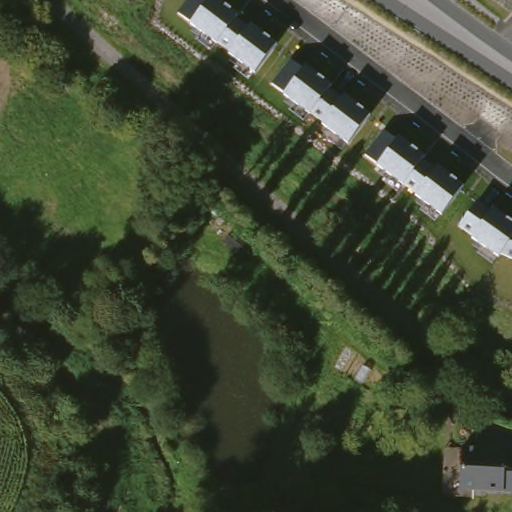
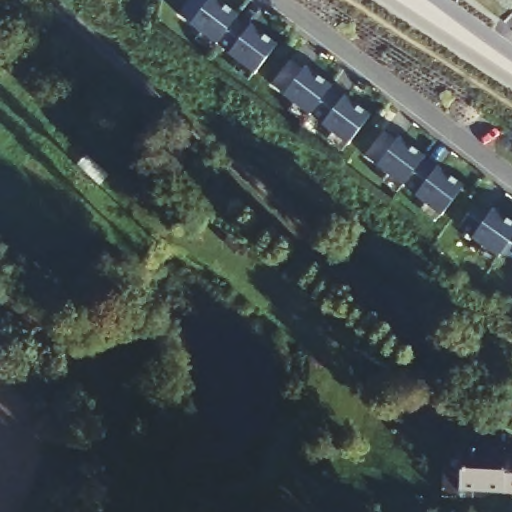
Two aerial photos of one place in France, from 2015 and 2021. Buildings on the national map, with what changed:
unchanged [(177,14),(189,0),(217,0),(276,44),(255,74),(190,24),(177,14)]
unchanged [(271,84),(290,61),(302,71),(305,67),(370,114),(348,145),(271,84)]
unchanged [(365,155),(383,131),(397,141),(400,137),(463,187),(441,215),(365,155)]
unchanged [(500,255),(497,258),(471,239),(457,227),(475,203),(490,212),(493,208),(512,222),(512,260),(500,255)]
unchanged [(443,448),(460,447),(505,449),(503,456),(512,456),(512,492),(501,491),(472,491),(472,499),(441,496),(443,448)]

